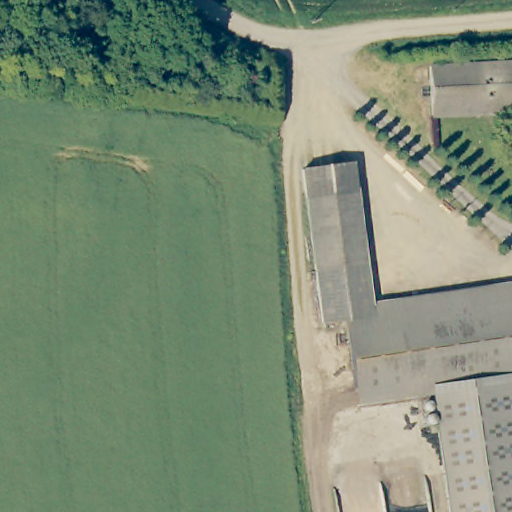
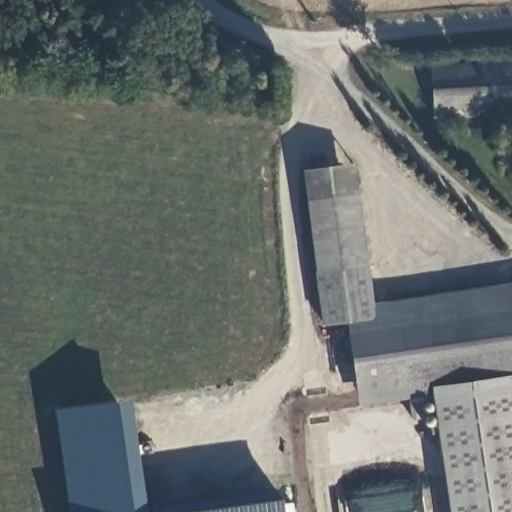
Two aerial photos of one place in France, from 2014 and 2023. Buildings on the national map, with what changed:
unchanged [(436,118),(434,67),(512,62),(512,114),(436,118)]
unchanged [(349,308),(343,269),(320,271),(311,198),(360,192),(374,305),(349,308)]
unchanged [(432,378),(360,389),(349,308),(374,305),(512,284),(512,366),(432,378)]
unchanged [(512,366),(512,512),(453,512),(432,378),(512,366)]
new [(129,406),(141,507),(301,500),(302,512),(68,512),(56,402),(129,406)]

